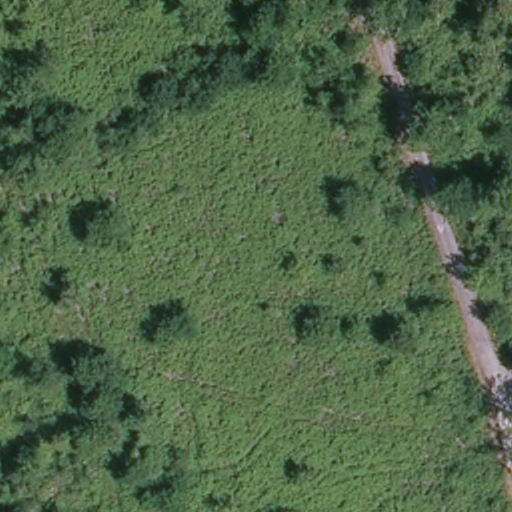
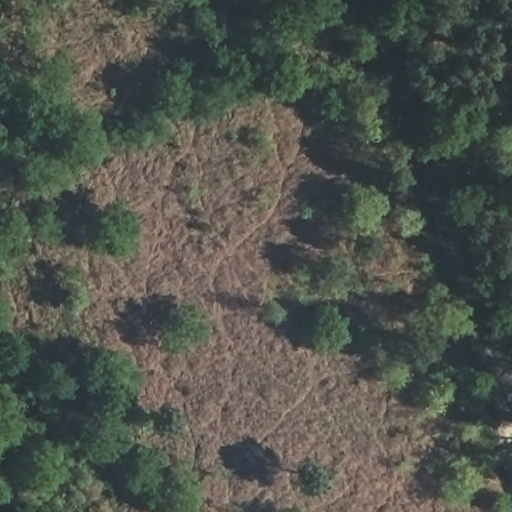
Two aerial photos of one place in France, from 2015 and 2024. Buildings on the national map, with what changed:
[]

